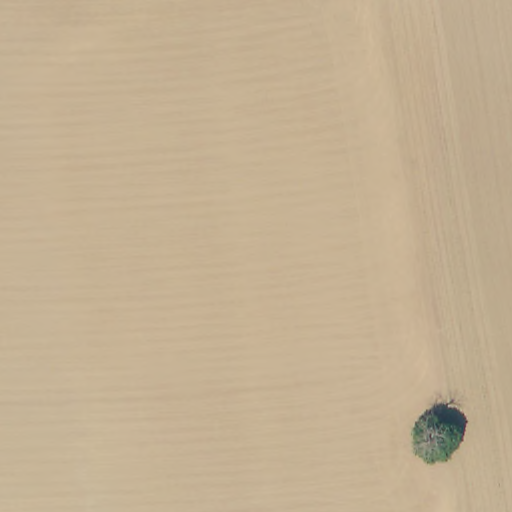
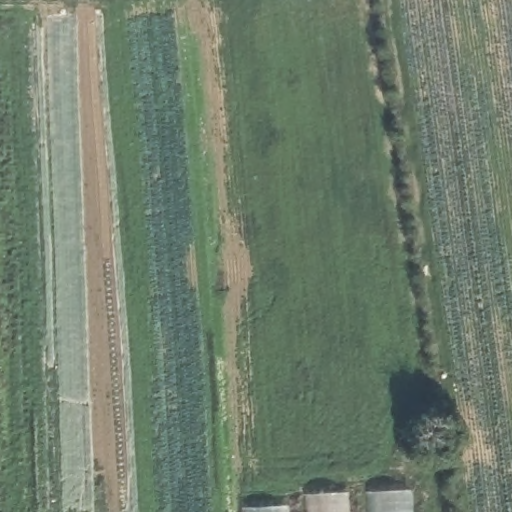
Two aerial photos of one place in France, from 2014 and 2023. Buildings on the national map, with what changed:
new [(369,492),(409,491),(411,512),(371,512),(369,492)]
new [(307,495),(348,494),(349,512),(308,512),(307,495)]
new [(245,508),(285,507),(286,512),(245,512),(245,508)]

